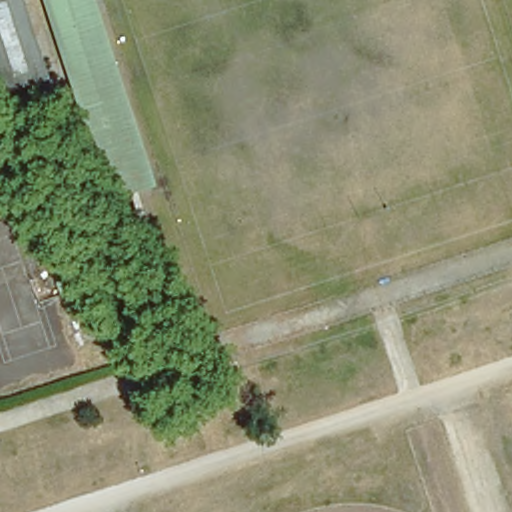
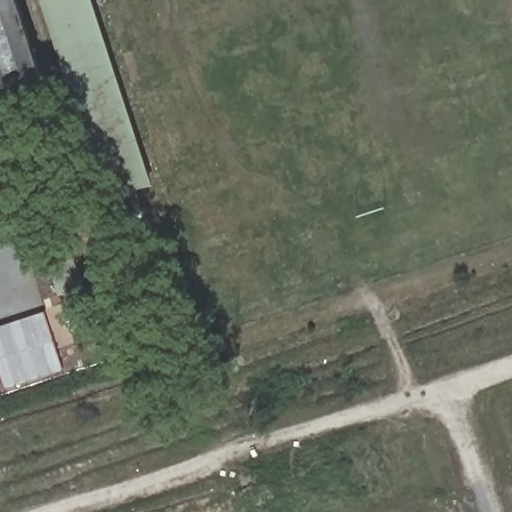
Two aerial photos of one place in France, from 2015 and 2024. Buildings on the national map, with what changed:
unchanged [(0,91),(0,0),(19,0),(45,77),(0,91)]
unchanged [(104,199),(37,0),(88,0),(149,183),(104,199)]
new [(45,312),(63,370),(7,390),(0,369),(0,329),(45,312)]

